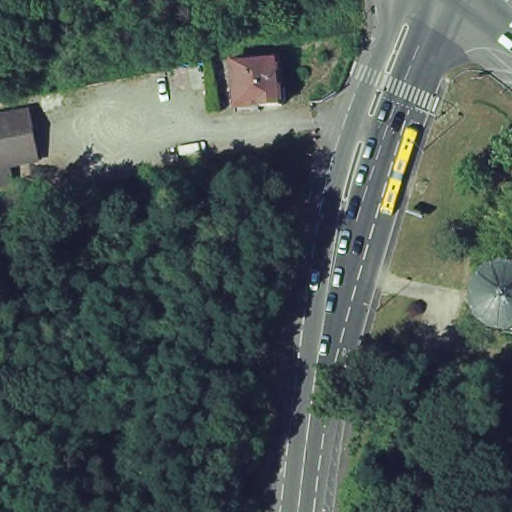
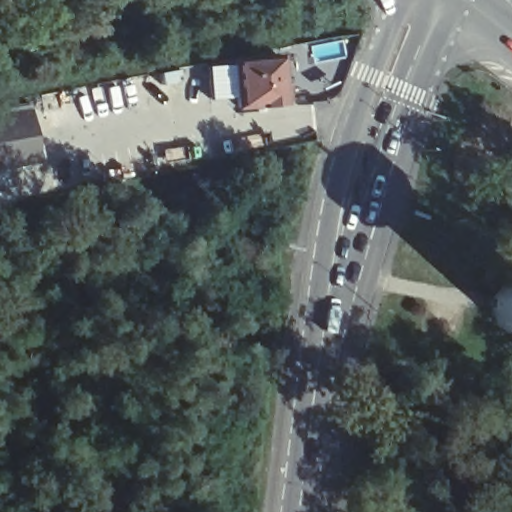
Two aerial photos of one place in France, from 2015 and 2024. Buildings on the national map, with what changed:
unchanged [(250,112),(249,105),(234,106),(230,61),(275,58),(278,86),(282,88),(282,101),(279,106),(257,108),(257,111),(250,112)]
unchanged [(26,106),(34,156),(0,163),(0,112),(26,106)]

